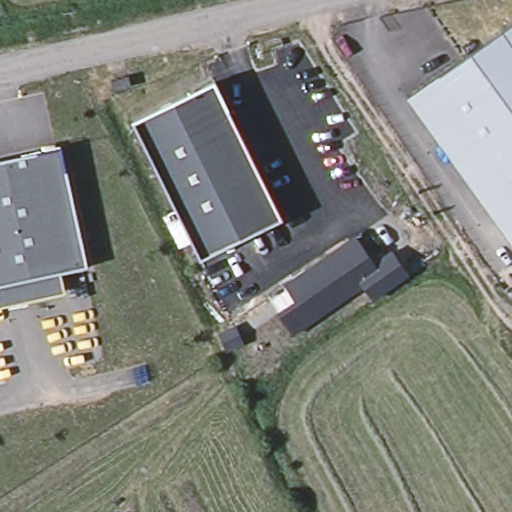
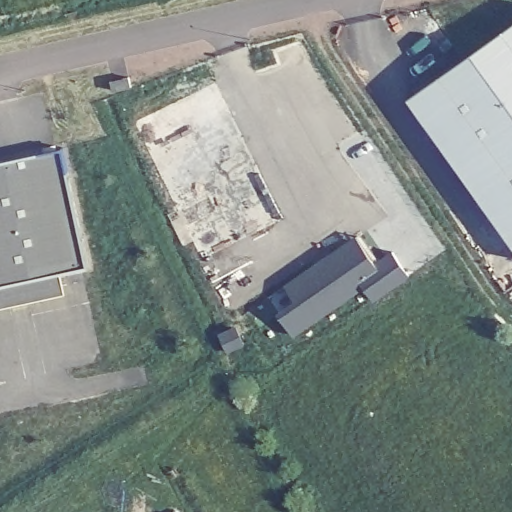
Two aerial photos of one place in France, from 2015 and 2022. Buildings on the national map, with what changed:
unchanged [(512,25),(512,244),(409,98),(512,25)]
unchanged [(114,79),(132,75),(134,85),(115,88),(114,79)]
demolished [(217,83),(284,220),(201,260),(135,123),(217,83)]
unchanged [(44,147),(57,144),(59,148),(64,147),(90,268),(66,273),(0,287),(0,161),(45,151),(44,147)]
unchanged [(281,314),(287,309),(274,291),(355,236),(375,260),(392,247),(410,279),(375,302),(365,290),(297,335),(281,314)]
unchanged [(66,273),(70,292),(0,308),(0,287),(66,273)]

